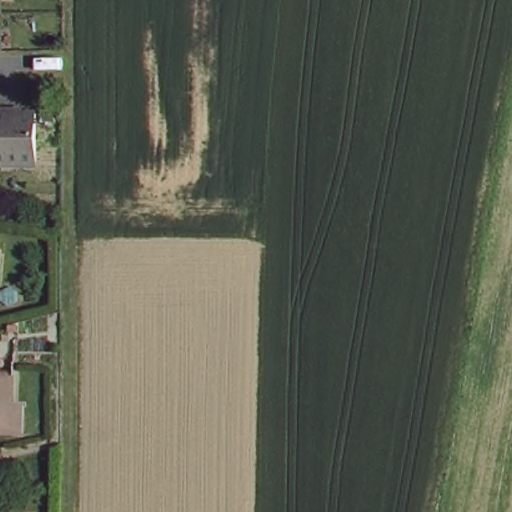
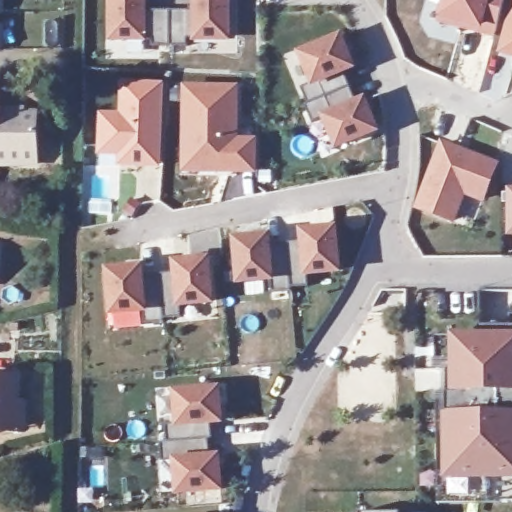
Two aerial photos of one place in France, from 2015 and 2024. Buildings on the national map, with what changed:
new [(107,11),(107,0),(141,0),(141,11),(190,13),(190,0),(223,0),(224,12),(214,12),(214,39),(185,38),(184,48),(143,48),(143,41),(117,40),(119,12),(107,11)]
new [(437,21),(439,16),(443,0),(504,0),(492,38),(437,21)]
new [(512,3),(512,57),(498,53),(512,3)]
new [(308,85),(298,55),(337,39),(351,72),(342,76),(354,103),(362,101),(376,133),(334,148),(322,118),(308,124),(295,91),(308,85)]
new [(98,155),(99,112),(119,114),(119,83),(162,85),(159,168),(118,166),(119,156),(98,155)]
new [(256,173),(181,172),(183,85),(239,85),(238,138),(257,139),(256,173)]
unchanged [(33,167),(0,167),(0,111),(14,112),(14,118),(31,118),(33,167)]
new [(440,136),(500,161),(483,203),(465,196),(453,224),(411,207),(440,136)]
new [(507,188),(512,187),(512,235),(507,236),(507,188)]
new [(266,238),(267,245),(301,243),(300,232),(334,229),(339,274),(305,276),(307,292),(269,293),(268,281),(235,284),(233,240),(266,238)]
new [(105,269),(137,266),(138,275),(174,273),(173,262),(206,260),(210,303),(177,305),(177,321),(142,323),(142,312),(110,315),(105,269)]
new [(431,496),(430,430),(440,430),(439,371),(430,371),(428,337),(512,337),(512,506),(466,506),(466,497),(431,496)]
unchanged [(19,428),(6,427),(0,427),(0,375),(10,376),(8,399),(21,400),(19,428)]
new [(173,462),(160,462),(158,440),(165,439),(164,424),(175,424),(173,393),(215,390),(218,421),(211,422),(211,440),(207,440),(209,459),(218,458),(220,490),(176,494),(173,462)]

